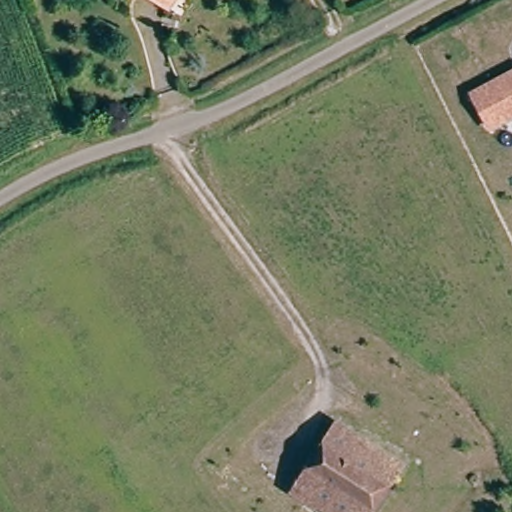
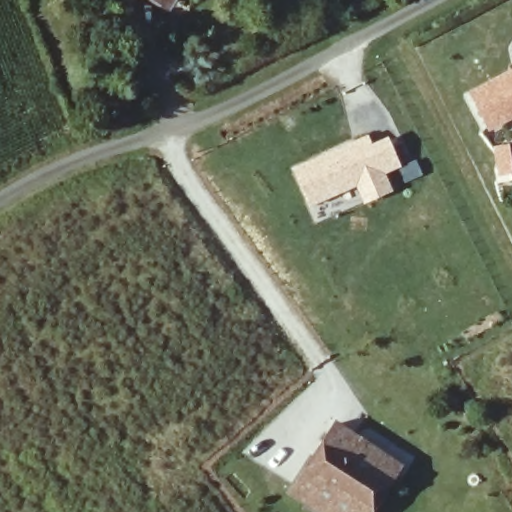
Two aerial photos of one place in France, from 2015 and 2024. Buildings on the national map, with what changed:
unchanged [(172,10),(157,0),(179,0),(172,10)]
unchanged [(475,94),(512,75),(512,118),(492,128),(475,94)]
new [(368,134),(372,143),(388,136),(402,167),(386,174),(394,191),(363,204),(356,190),(310,209),(292,167),(368,134)]
new [(417,159),(424,175),(405,183),(399,168),(417,159)]
unchanged [(321,512),(294,494),(338,428),(404,472),(377,512),(321,512)]

